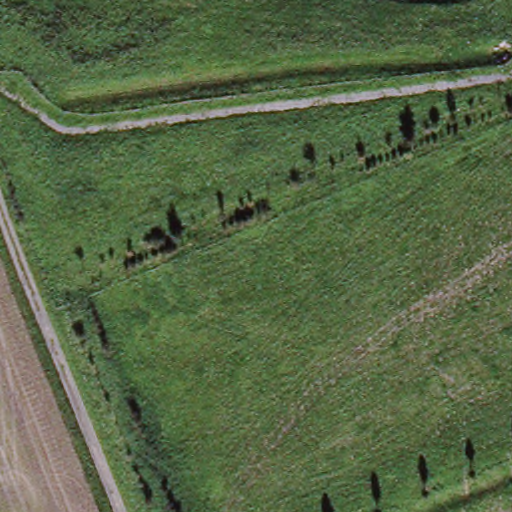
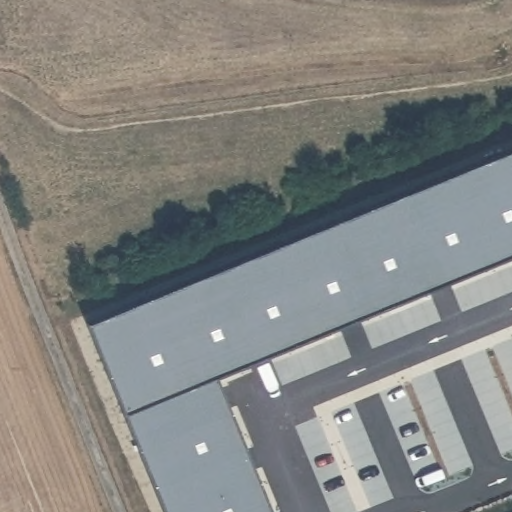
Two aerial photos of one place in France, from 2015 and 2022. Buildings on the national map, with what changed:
new [(512,255),(217,377),(273,512),(164,512),(86,322),(512,146),(512,255)]

